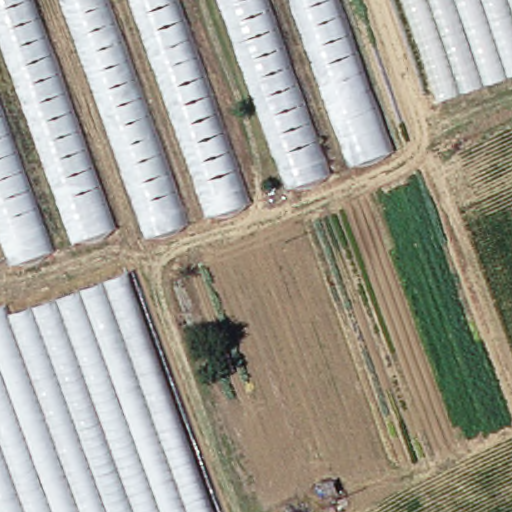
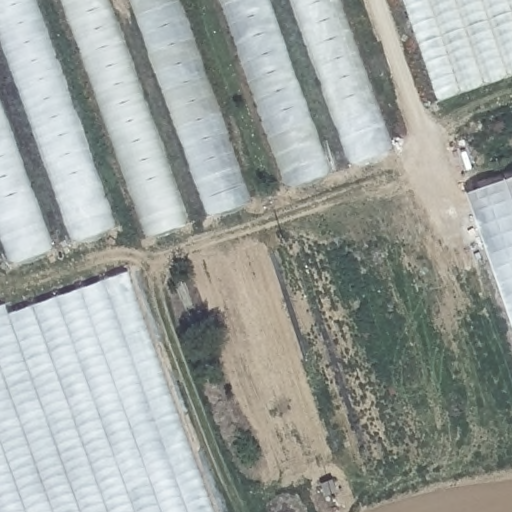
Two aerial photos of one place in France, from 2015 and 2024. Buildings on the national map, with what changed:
unchanged [(78,245),(0,21),(0,0),(37,0),(117,230),(78,245)]
unchanged [(153,237),(69,0),(110,0),(190,225),(153,237)]
unchanged [(212,218),(136,0),(179,0),(254,206),(212,218)]
unchanged [(226,0),(271,0),(332,177),(292,191),(226,0)]
unchanged [(339,0),(393,155),(355,167),(297,0),(339,0)]
unchanged [(439,89),(409,0),(512,0),(512,66),(439,89)]
unchanged [(19,266),(0,214),(0,98),(55,251),(19,266)]
new [(467,195),(512,179),(512,323),(467,195)]
unchanged [(12,311),(131,267),(218,512),(0,512),(0,303),(8,301),(12,311)]

